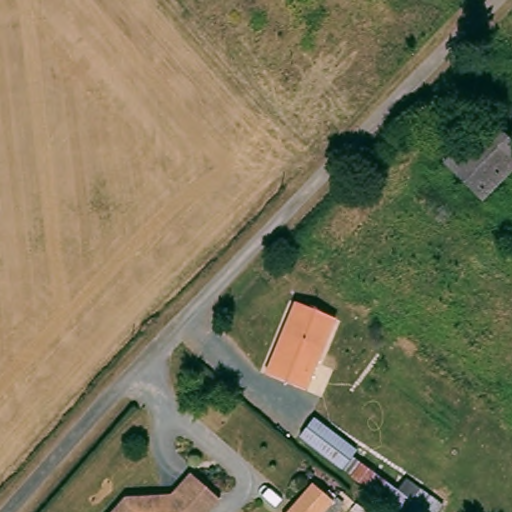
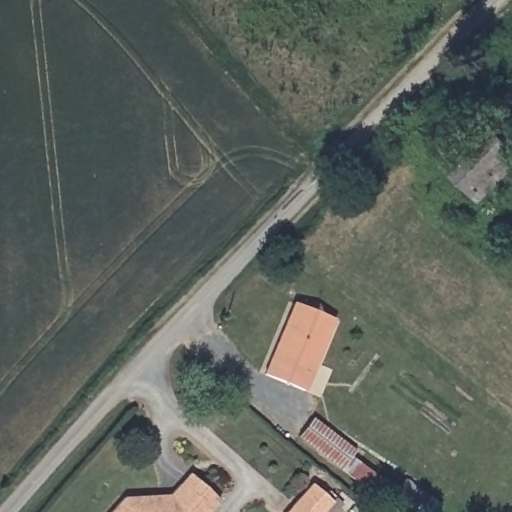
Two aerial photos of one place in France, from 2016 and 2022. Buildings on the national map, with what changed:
unchanged [(512,140),(512,171),(484,197),(448,160),(491,119),(512,140)]
unchanged [(342,316),(310,387),(272,370),(304,297),(342,316)]
unchanged [(364,451),(346,470),(301,434),(317,415),(364,451)]
unchanged [(354,473),(363,460),(435,512),(408,512),(354,473)]
unchanged [(223,495),(210,512),(116,512),(127,497),(158,494),(173,492),(192,470),(223,495)]
unchanged [(333,504),(326,512),(283,512),(311,485),(333,504)]

